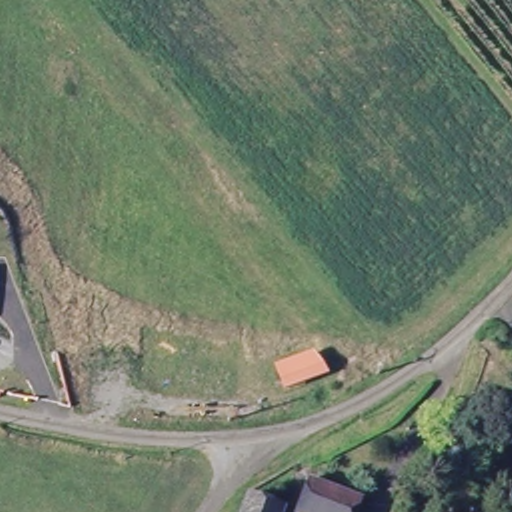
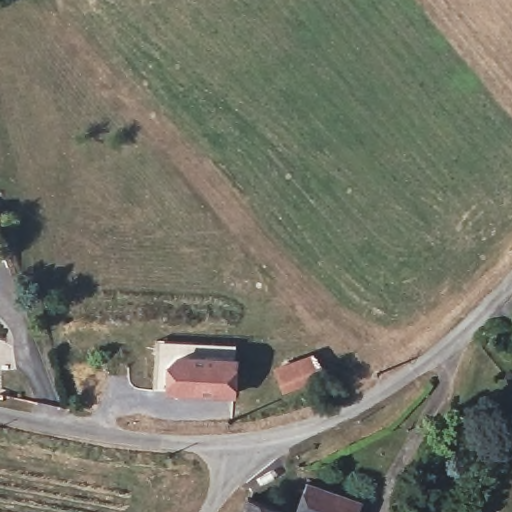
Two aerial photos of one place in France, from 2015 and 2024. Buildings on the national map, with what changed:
unchanged [(314,352),(328,375),(283,392),(274,367),(314,352)]
new [(180,355),(237,358),(235,397),(164,394),(165,364),(180,355)]
unchanged [(362,497),(359,512),(296,512),(307,472),(362,497)]
unchanged [(245,493),(275,505),(274,512),(237,512),(241,495),(245,493)]

